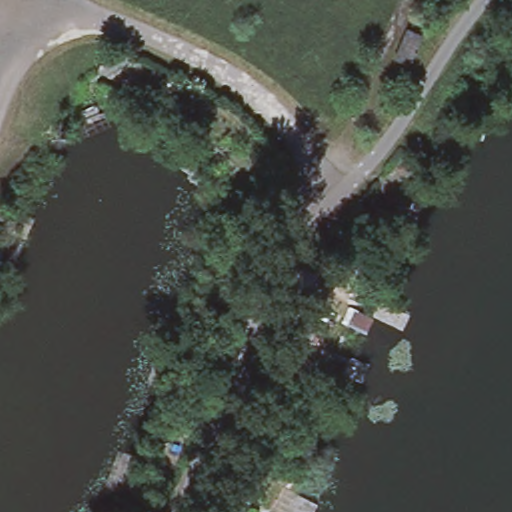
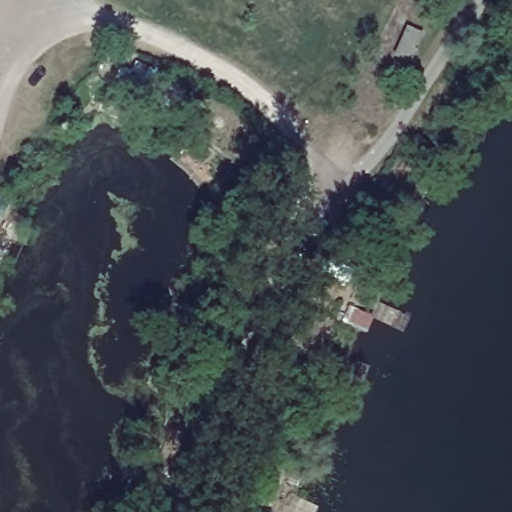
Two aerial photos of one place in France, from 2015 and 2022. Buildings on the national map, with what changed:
unchanged [(422,32),(414,53),(398,47),(406,26),(422,32)]
unchanged [(161,439),(176,445),(169,464),(153,459),(161,439)]

